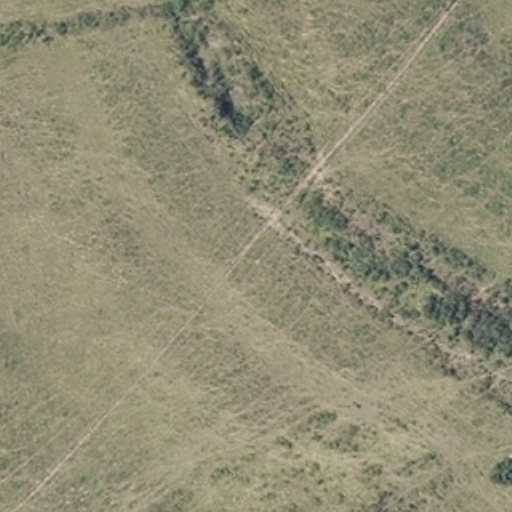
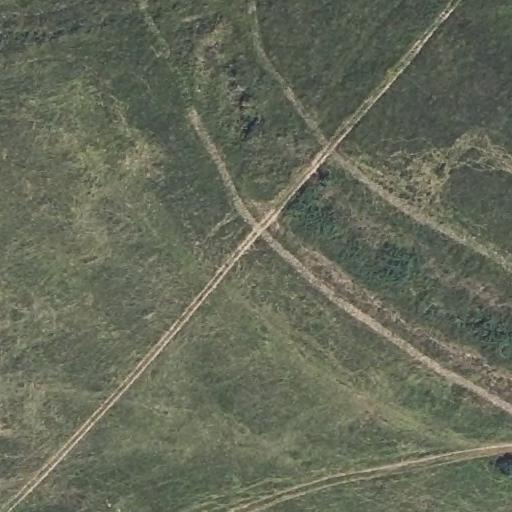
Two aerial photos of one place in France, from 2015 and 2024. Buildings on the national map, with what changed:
[]

